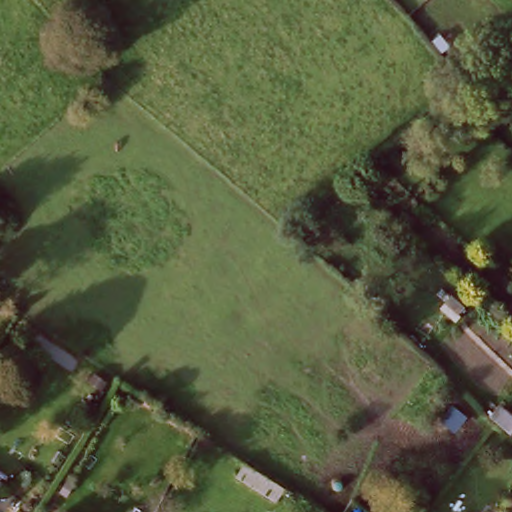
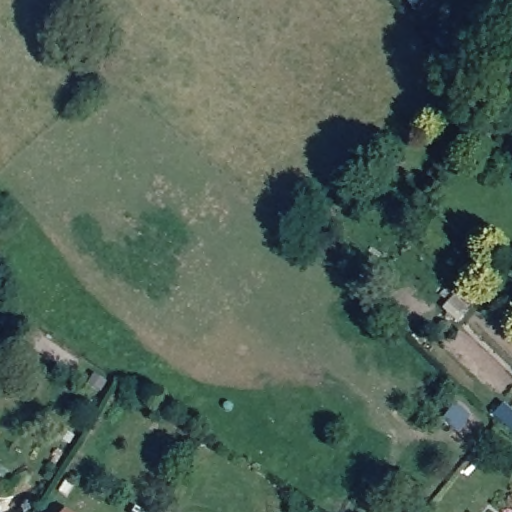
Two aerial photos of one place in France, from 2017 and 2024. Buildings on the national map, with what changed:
unchanged [(494,420),(504,408),(512,415),(512,436),(498,423),(494,420)]

